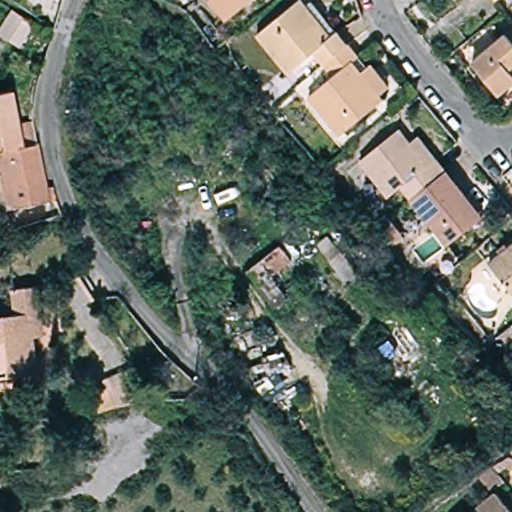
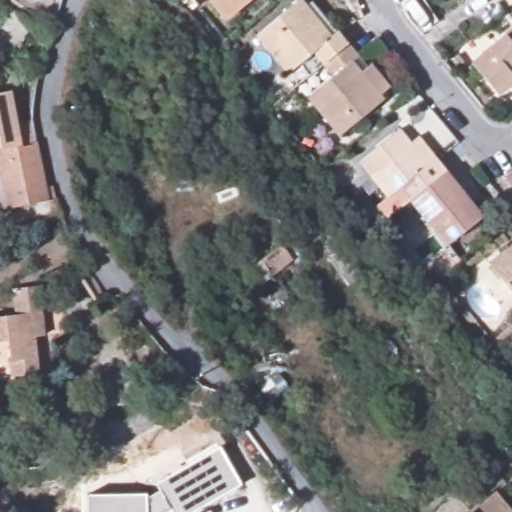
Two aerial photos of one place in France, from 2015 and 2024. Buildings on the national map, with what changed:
unchanged [(43,0),(44,0),(44,1),(43,0)]
unchanged [(212,0),(248,0),(227,18),(212,0)]
unchanged [(490,0),(494,0),(492,2),(490,0)]
unchanged [(318,67),(308,56),(284,75),(252,39),(296,1),(327,37),(333,32),(344,45),(318,67)]
unchanged [(0,51),(0,15),(6,19),(29,34),(36,39),(31,52),(20,47),(13,59),(0,51)]
unchanged [(470,61),(512,27),(512,83),(498,95),(470,61)]
unchanged [(354,57),(348,62),(379,99),(333,136),(305,100),(328,79),(318,67),(344,45),(354,57)]
unchanged [(0,211),(0,96),(12,94),(18,126),(32,124),(50,203),(0,211)]
unchanged [(401,204),(390,191),(383,197),(355,162),(395,129),(405,143),(414,136),(431,156),(442,170),(404,201),(401,204)]
unchanged [(482,217),(444,248),(404,201),(442,170),(482,217)]
unchanged [(395,245),(379,225),(393,214),(409,236),(395,245)]
unchanged [(259,283),(247,267),(291,236),(301,250),(293,256),(294,257),(260,284),(259,283)]
unchanged [(503,298),(479,267),(512,241),(512,307),(511,308),(503,298)]
unchanged [(14,308),(8,284),(34,277),(46,326),(35,328),(41,352),(14,359),(9,338),(0,341),(0,311),(14,308)]
unchanged [(156,398),(122,403),(104,411),(92,383),(141,363),(156,398)]
new [(147,493),(147,498),(158,492),(155,484),(220,447),(242,486),(195,512),(86,512),(86,495),(147,493)]
unchanged [(491,490),(509,512),(465,512),(491,490)]

